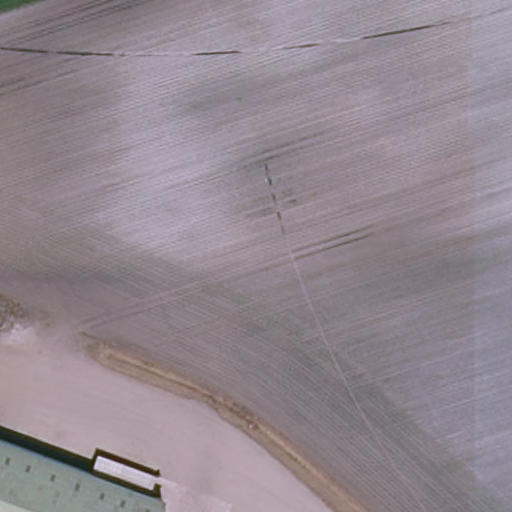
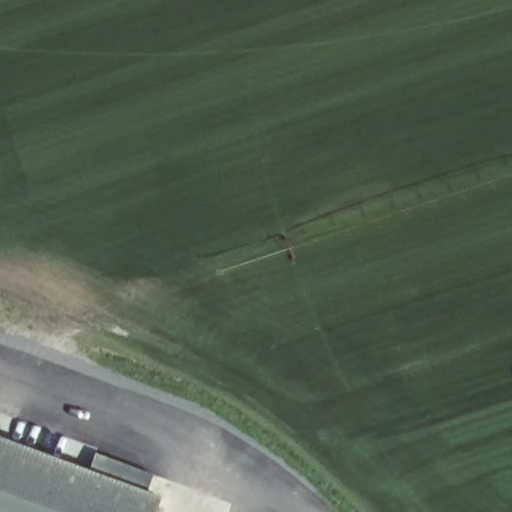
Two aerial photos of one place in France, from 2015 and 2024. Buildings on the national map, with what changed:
unchanged [(133,512),(0,512),(0,466),(133,512)]

